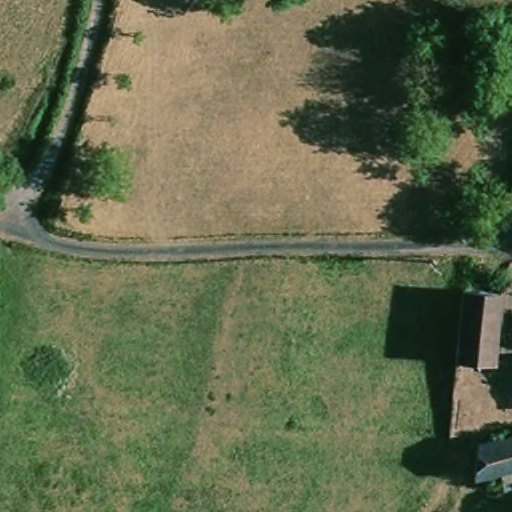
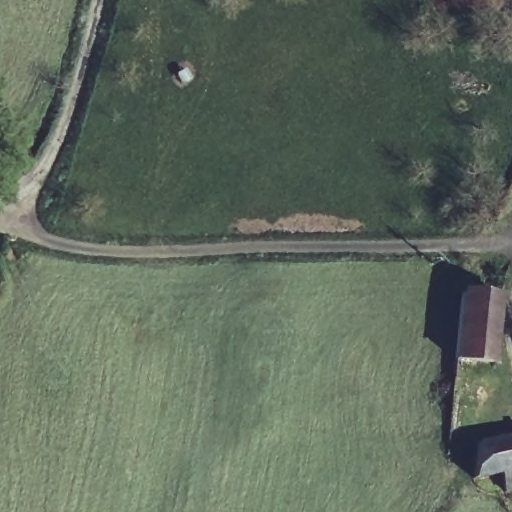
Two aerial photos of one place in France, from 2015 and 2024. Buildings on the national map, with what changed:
unchanged [(497,365),(459,363),(462,296),(500,298),(497,365)]
unchanged [(467,480),(471,449),(512,442),(512,493),(501,493),(498,477),(467,480)]

